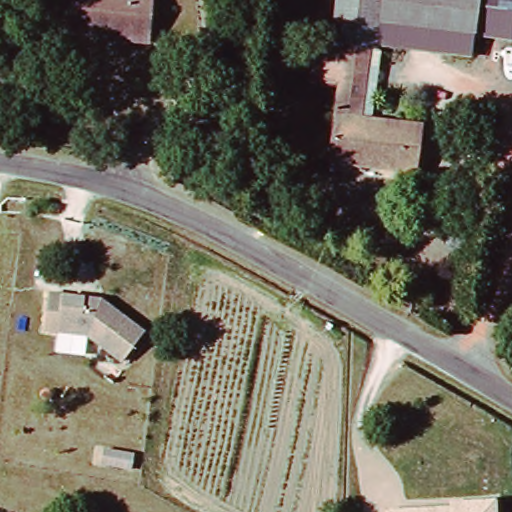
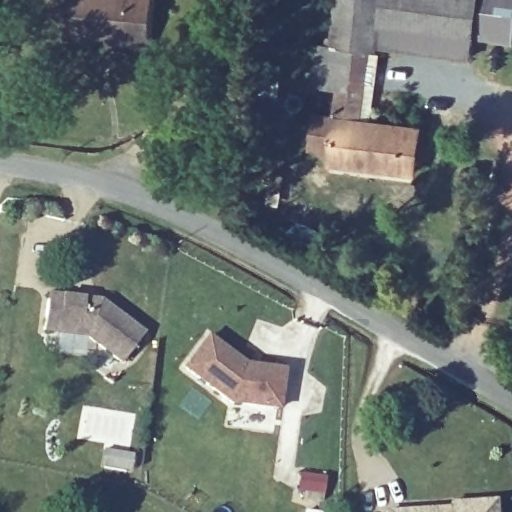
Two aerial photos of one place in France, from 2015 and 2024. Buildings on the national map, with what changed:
unchanged [(114,40),(74,36),(77,0),(155,0),(155,34),(115,30),(114,40)]
unchanged [(375,122),(427,128),(422,175),(341,166),(341,152),(352,46),(339,45),(343,0),(388,0),(385,30),(375,122)]
unchanged [(481,41),(385,30),(388,0),(485,0),(481,41)]
unchanged [(485,0),(512,0),(512,44),(481,41),(485,0)]
unchanged [(102,296),(147,329),(122,363),(87,336),(46,330),(51,293),(102,296)]
new [(207,337),(252,370),(255,366),(282,369),(278,407),(229,402),(184,368),(207,337)]
unchanged [(135,452),(132,472),(99,467),(103,446),(135,452)]
unchanged [(447,500),(496,498),(497,512),(384,512),(384,511),(448,507),(447,500)]

